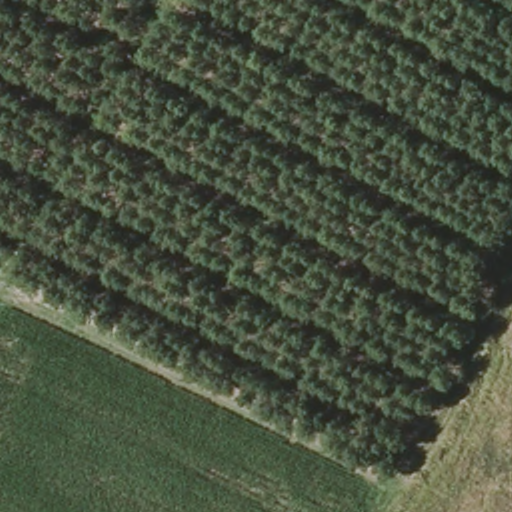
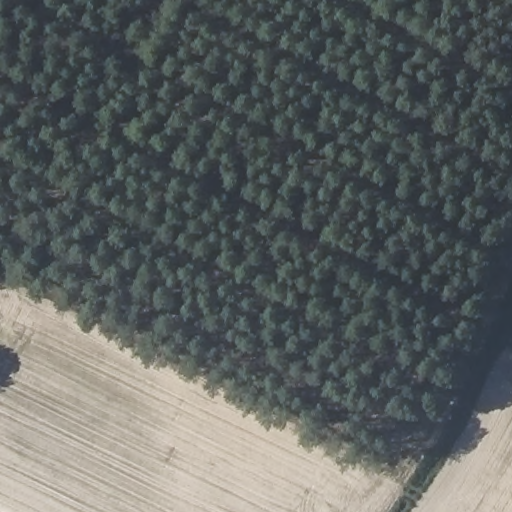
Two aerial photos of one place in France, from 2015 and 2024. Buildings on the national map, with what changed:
[]

